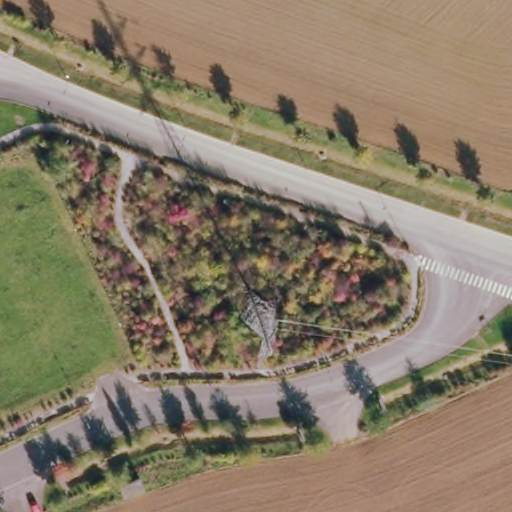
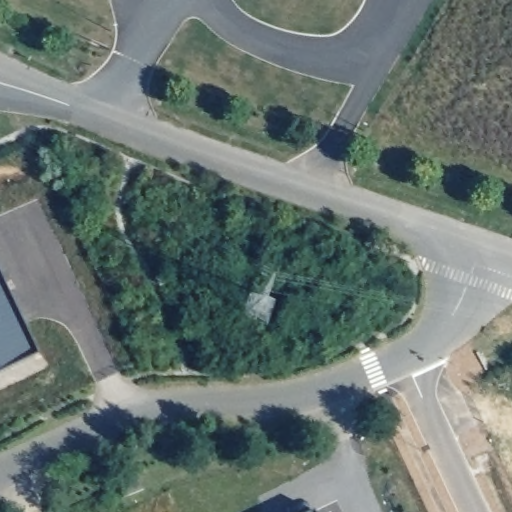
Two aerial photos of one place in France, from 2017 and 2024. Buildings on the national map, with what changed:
new [(37,355),(0,373),(0,276),(37,355)]

